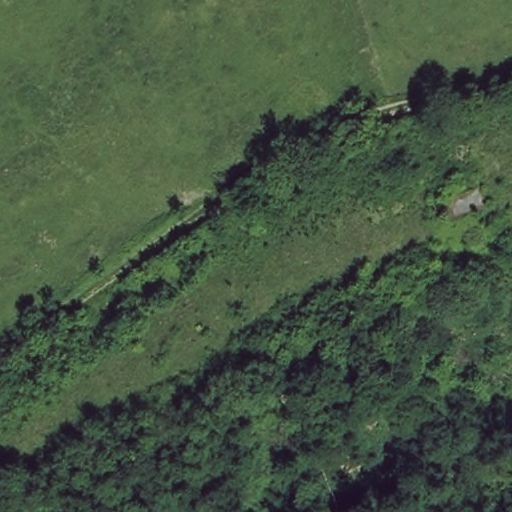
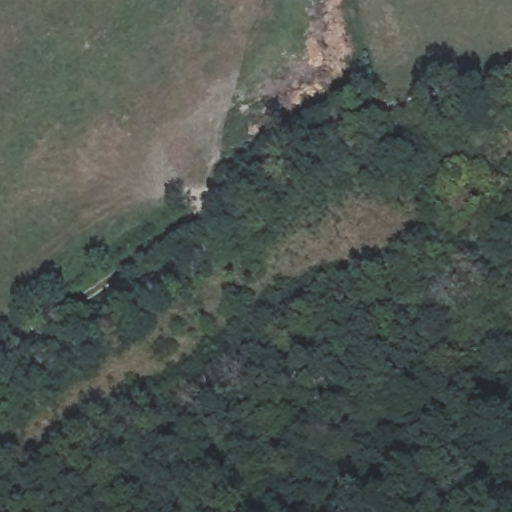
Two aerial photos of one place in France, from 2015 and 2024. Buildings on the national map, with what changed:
unchanged [(497,203),(460,217),(452,193),(489,181),(497,203)]

